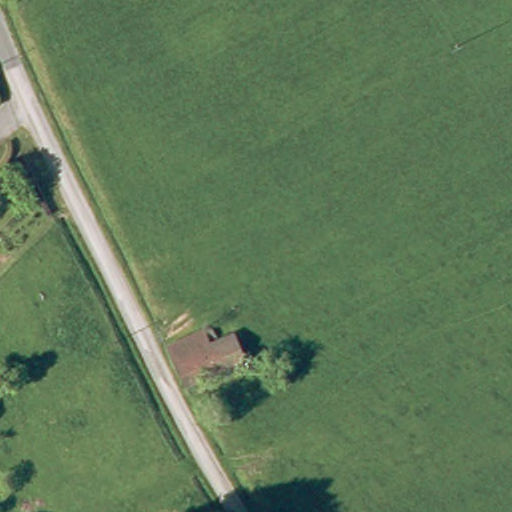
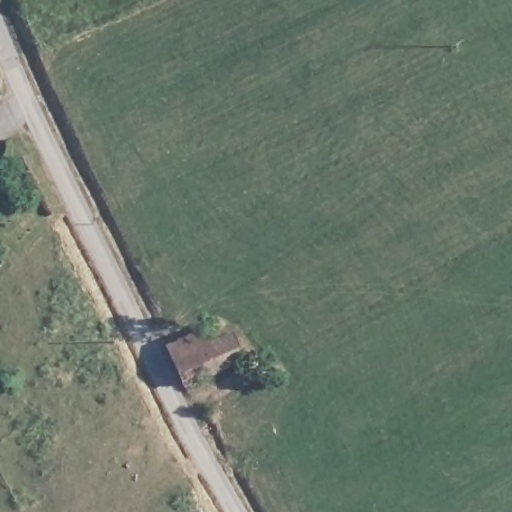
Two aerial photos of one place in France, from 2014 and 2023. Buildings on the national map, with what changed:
unchanged [(167,345),(225,319),(242,357),(185,384),(167,345)]

